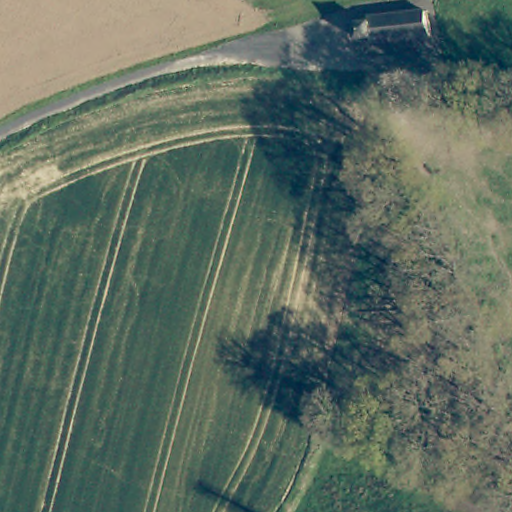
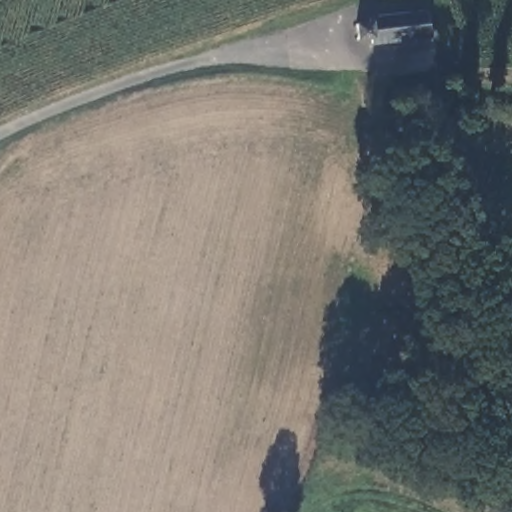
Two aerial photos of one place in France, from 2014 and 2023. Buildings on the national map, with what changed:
unchanged [(358,33),(370,30),(369,27),(431,16),(436,40),(374,47),(362,50),(358,33)]

